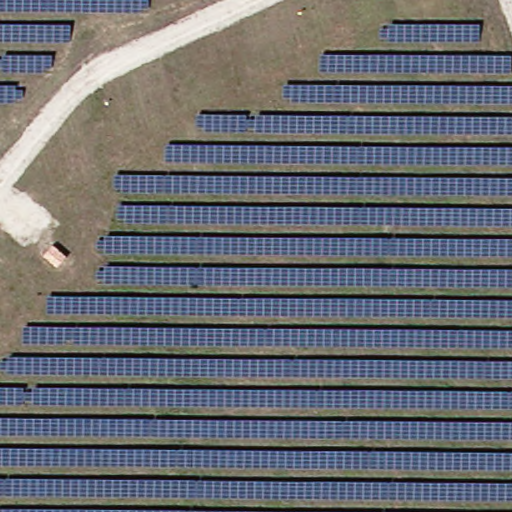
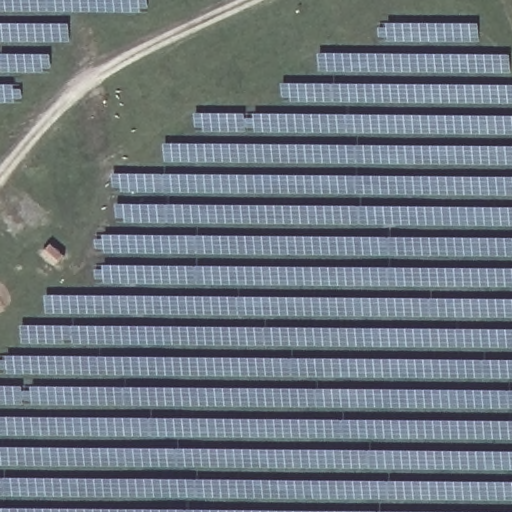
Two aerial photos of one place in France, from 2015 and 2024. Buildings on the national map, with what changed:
[]

